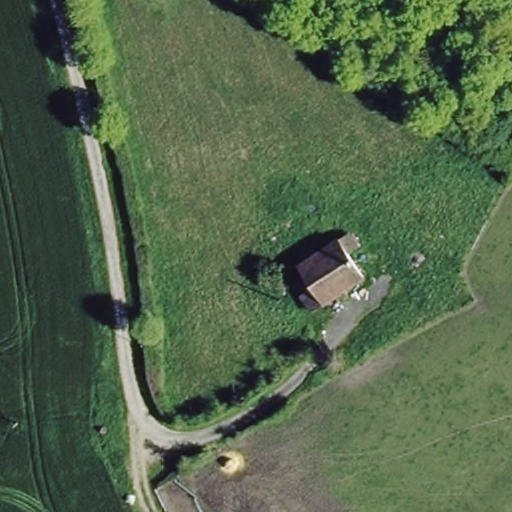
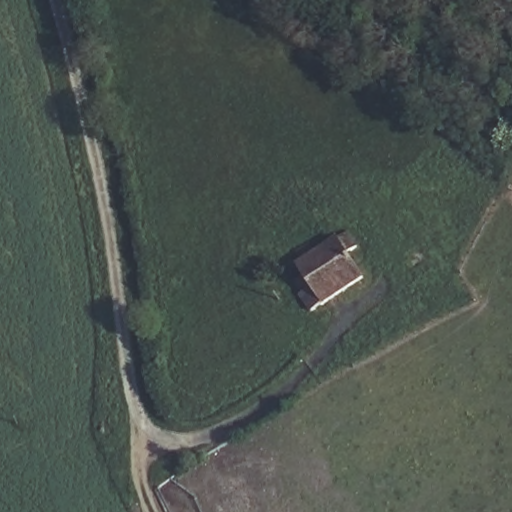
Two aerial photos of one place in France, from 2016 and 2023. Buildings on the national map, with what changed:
unchanged [(350,227),(364,244),(348,255),(364,273),(318,303),(293,262),(350,227)]

